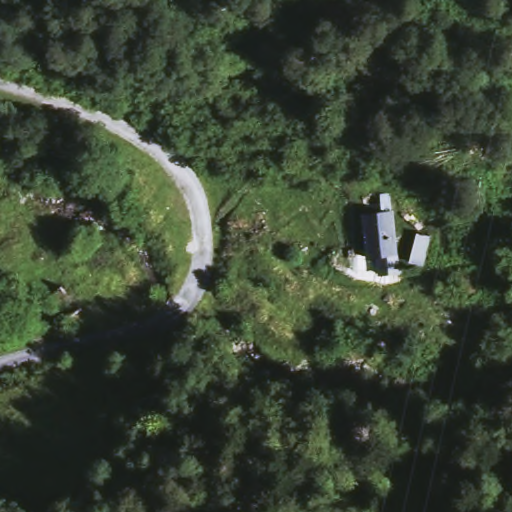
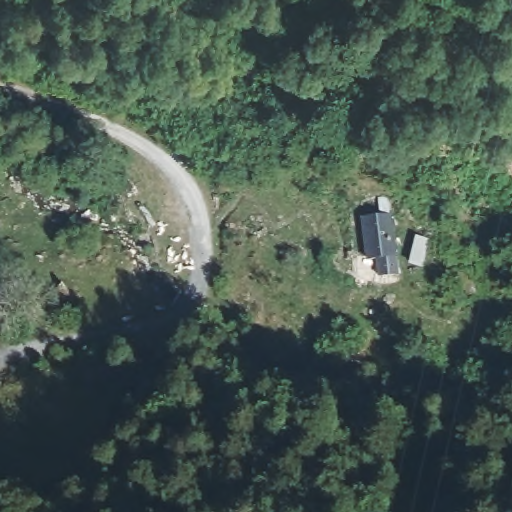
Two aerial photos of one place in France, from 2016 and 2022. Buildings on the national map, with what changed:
unchanged [(402,277),(382,280),(379,257),(366,259),(363,235),(360,216),(394,211),(402,277)]

